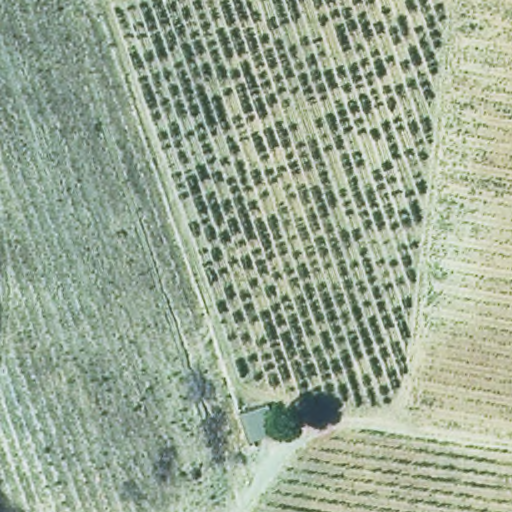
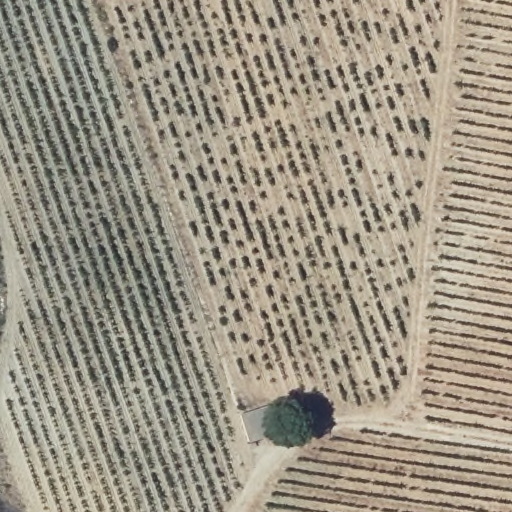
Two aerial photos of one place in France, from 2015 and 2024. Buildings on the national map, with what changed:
unchanged [(236,409),(271,401),(280,434),(247,443),(236,409)]

